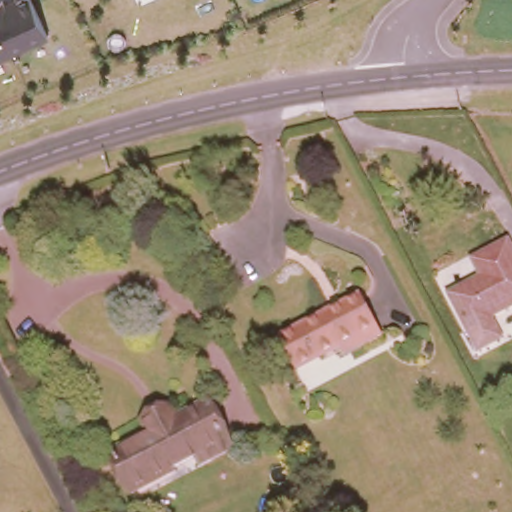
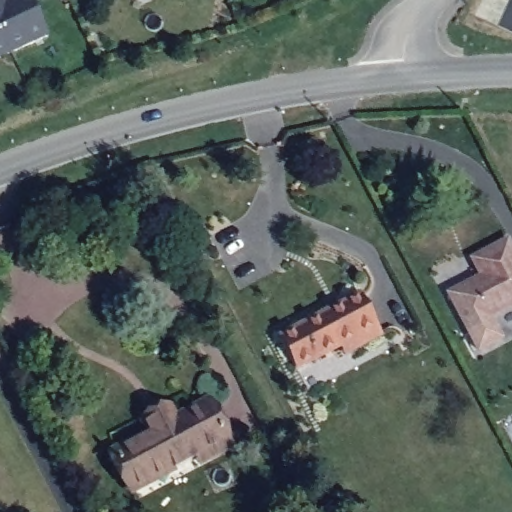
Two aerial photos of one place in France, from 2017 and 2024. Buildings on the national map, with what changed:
unchanged [(0,57),(0,0),(5,0),(6,2),(10,0),(31,0),(48,35),(0,57)]
unchanged [(503,242),(512,261),(512,305),(485,318),(496,340),(473,351),(444,295),(476,278),(467,260),(503,242)]
unchanged [(339,343),(294,366),(279,335),(361,293),(382,332),(361,343),(343,352),(339,343)]
unchanged [(120,477),(118,474),(110,479),(105,470),(113,466),(105,450),(143,430),(138,418),(164,404),(171,416),(203,399),(227,445),(205,457),(195,462),(191,453),(165,468),(126,489),(120,477)]

